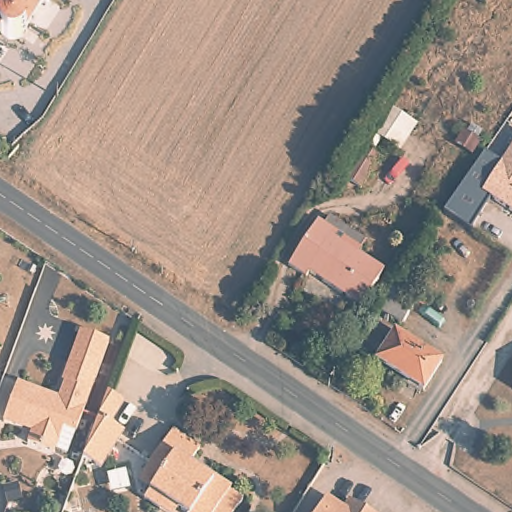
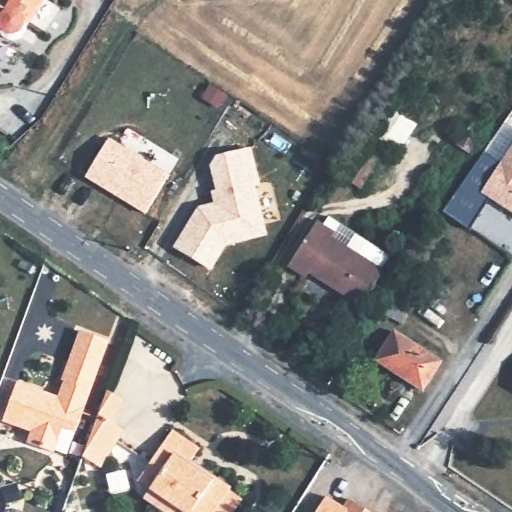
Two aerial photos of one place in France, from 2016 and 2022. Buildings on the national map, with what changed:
unchanged [(17,46),(10,48),(3,47),(0,45),(0,0),(40,0),(23,26),(24,34),(22,40),(17,46)]
unchanged [(414,126),(397,151),(371,135),(388,110),(414,126)]
new [(111,137),(168,172),(143,215),(85,178),(111,137)]
unchanged [(480,194),(512,144),(512,214),(480,194)]
unchanged [(360,191),(344,180),(367,146),(382,156),(360,191)]
new [(199,209),(219,205),(212,166),(218,155),(252,147),(268,232),(225,244),(209,273),(172,248),(199,209)]
unchanged [(336,231),(333,236),(385,271),(360,308),(309,273),(305,278),(288,266),(319,219),(336,231)]
unchanged [(426,296),(415,310),(391,294),(401,279),(426,296)]
unchanged [(401,323),(380,310),(388,298),(409,312),(401,323)]
unchanged [(75,431),(63,427),(54,451),(27,442),(31,431),(2,420),(17,381),(58,396),(63,380),(61,379),(79,329),(108,340),(75,431)]
unchanged [(421,390),(380,362),(400,332),(441,360),(421,390)]
unchanged [(107,387),(124,399),(108,421),(126,434),(102,468),(83,453),(107,387)]
unchanged [(195,451),(188,465),(224,489),(223,492),(237,500),(229,512),(177,512),(161,501),(155,511),(140,500),(152,480),(141,469),(166,433),(195,451)]
unchanged [(325,497),(343,508),(348,499),(365,509),(364,512),(317,512),(325,497)]
unchanged [(370,512),(364,512),(365,509),(370,512)]

